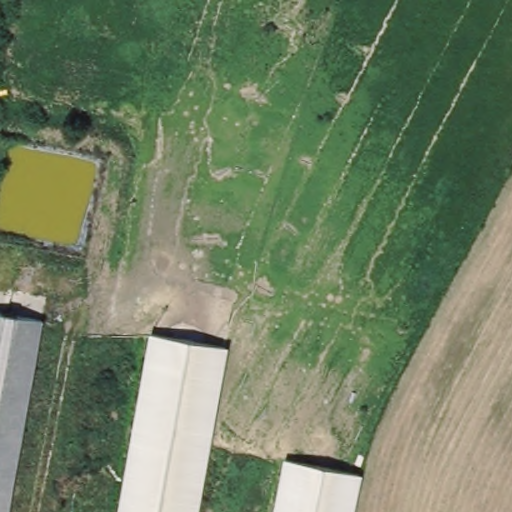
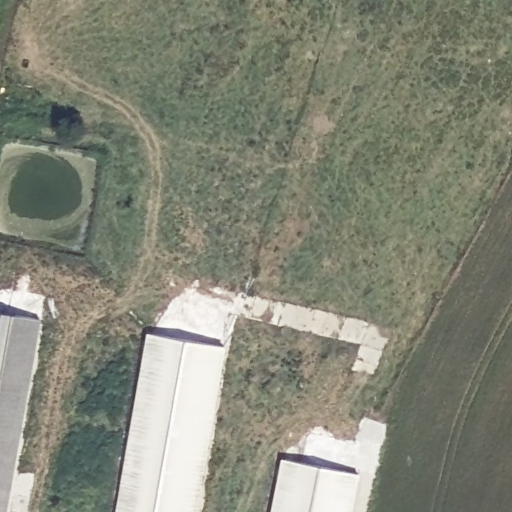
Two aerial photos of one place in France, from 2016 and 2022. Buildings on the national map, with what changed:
unchanged [(5,512),(0,512),(0,305),(45,314),(5,512)]
unchanged [(230,345),(199,512),(115,512),(149,330),(230,345)]
unchanged [(352,512),(273,512),(282,461),(359,476),(352,512)]

